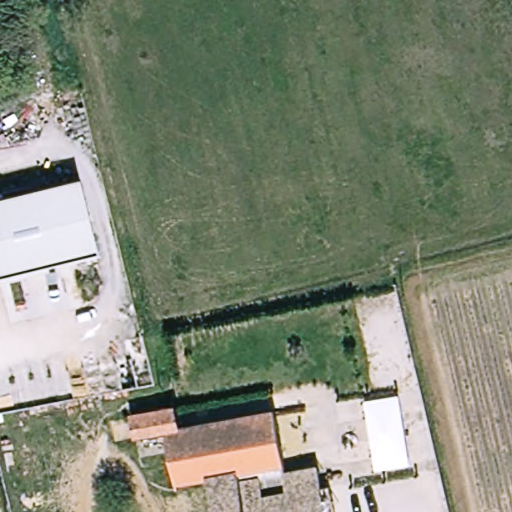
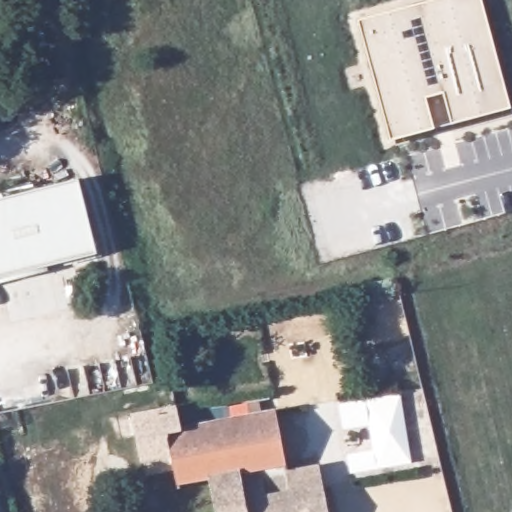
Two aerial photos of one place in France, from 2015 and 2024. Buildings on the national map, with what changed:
new [(391,141),(358,21),(436,0),(482,0),(511,108),(453,124),(444,93),(426,98),(435,129),(391,141)]
unchanged [(98,250),(0,276),(0,197),(79,176),(98,250)]
new [(432,428),(437,457),(412,461),(413,463),(351,474),(347,454),(374,450),(369,425),(344,430),(339,405),(401,394),(407,432),(432,428)]
unchanged [(181,430),(278,412),(287,473),(319,469),(321,488),(331,487),(336,512),(216,512),(209,475),(177,480),(173,458),(141,464),(133,412),(176,405),(181,430)]

